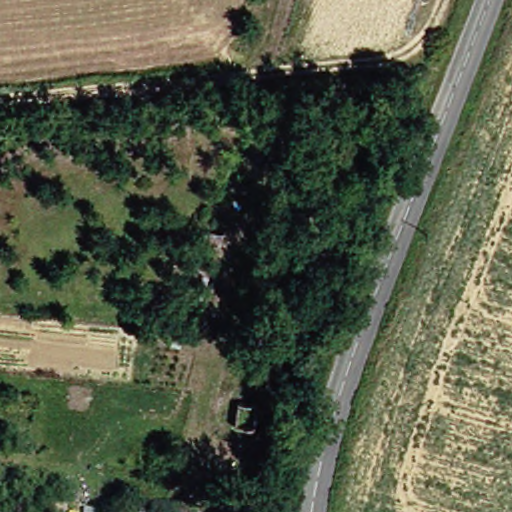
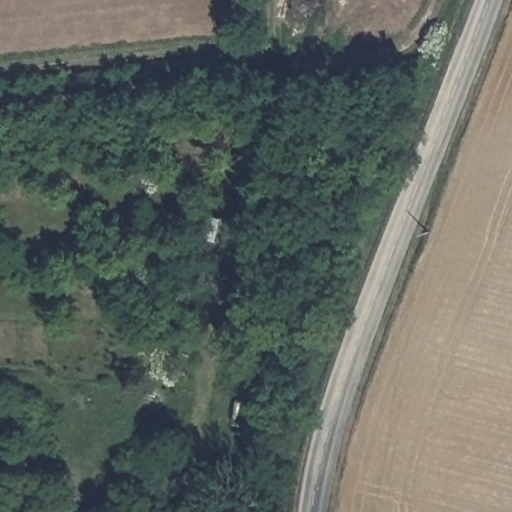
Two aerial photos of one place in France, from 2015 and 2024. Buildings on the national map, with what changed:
unchanged [(264,390),(250,387),(255,364),(268,366),(264,390)]

